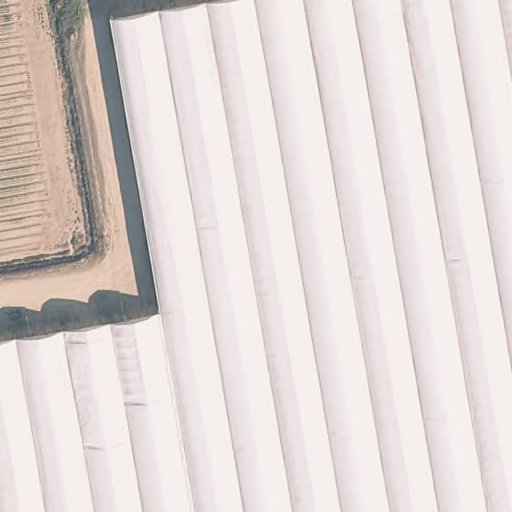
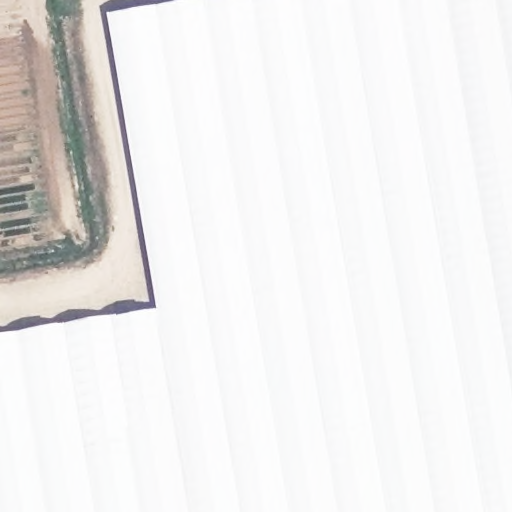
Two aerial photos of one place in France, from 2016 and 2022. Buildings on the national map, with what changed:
unchanged [(106,18),(210,0),(512,0),(512,512),(0,512),(0,337),(158,310),(106,18)]

